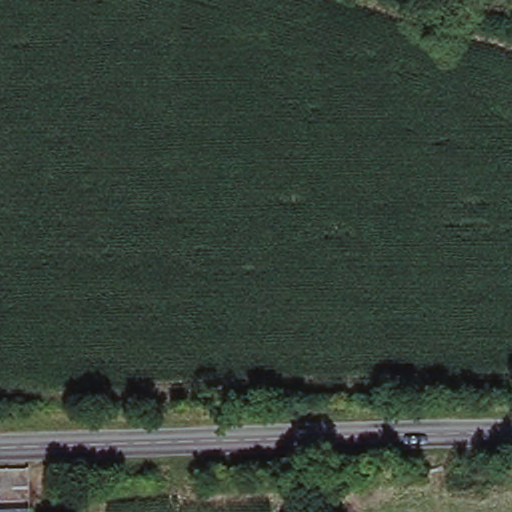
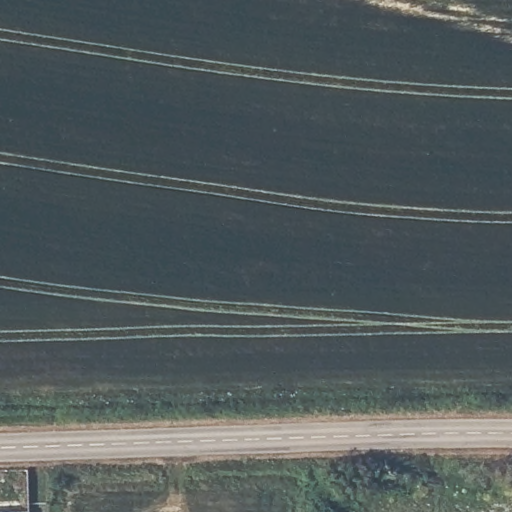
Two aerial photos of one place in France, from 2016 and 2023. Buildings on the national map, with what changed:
unchanged [(0,512),(0,510),(40,508),(41,512),(0,512)]

